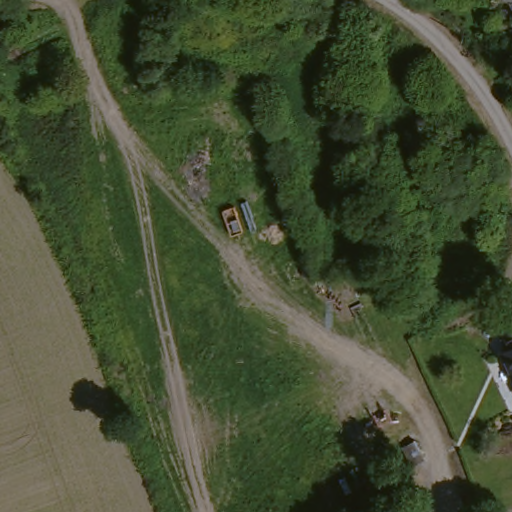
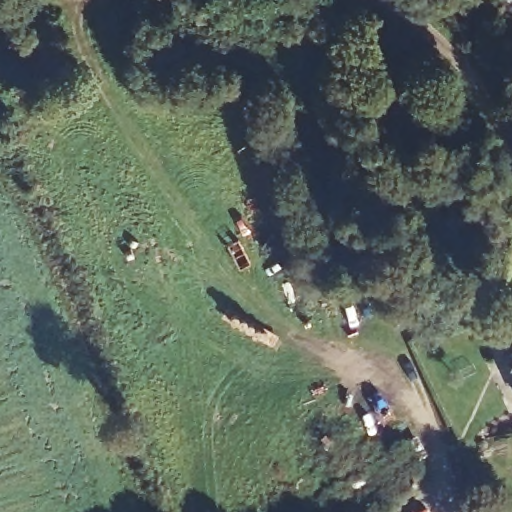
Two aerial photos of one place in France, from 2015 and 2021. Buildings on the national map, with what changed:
unchanged [(512,324),(512,383),(501,347),(505,345),(500,328),(512,324)]

